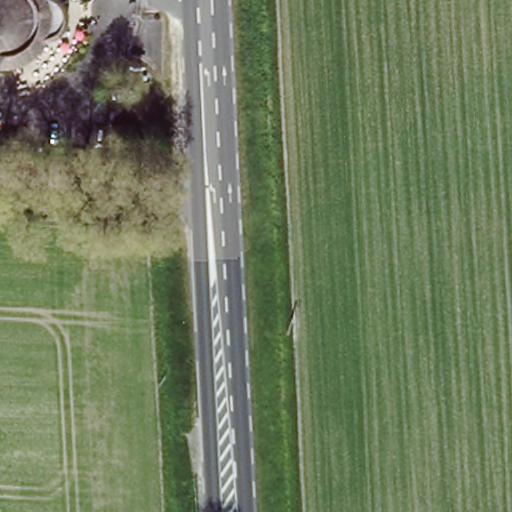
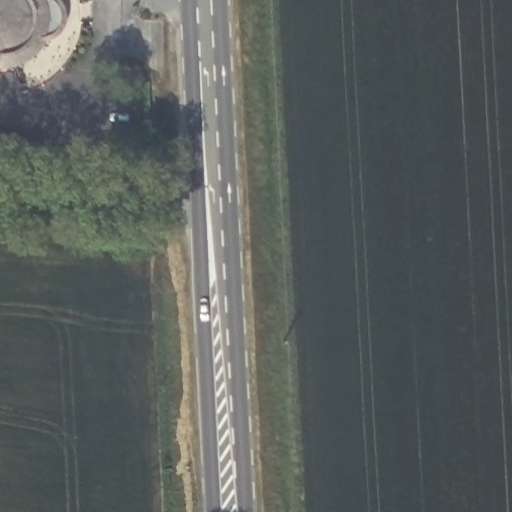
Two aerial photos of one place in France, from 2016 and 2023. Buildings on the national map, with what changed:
unchanged [(50,10),(48,25),(41,39),(31,50),(17,58),(1,61),(0,54),(0,0),(48,0),(50,10)]

